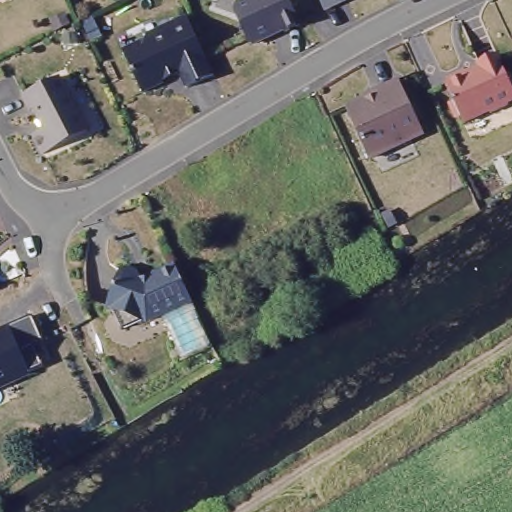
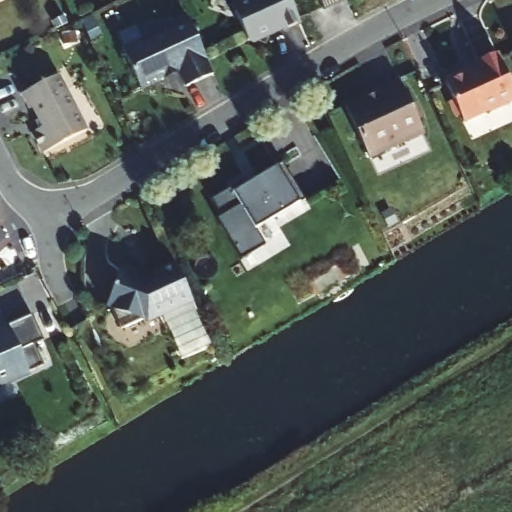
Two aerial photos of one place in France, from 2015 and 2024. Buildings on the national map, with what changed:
unchanged [(300,17),(285,25),(283,23),(254,37),(247,35),(232,6),(236,0),(293,0),(300,17)]
unchanged [(323,1),(323,0),(326,0),(323,1)]
unchanged [(219,77),(192,90),(184,74),(166,82),(167,85),(147,95),(127,55),(148,44),(150,38),(190,18),(219,77)]
unchanged [(512,108),(497,116),(495,113),(470,125),(452,87),(451,80),(470,72),(474,75),(480,73),(479,71),(485,68),(483,65),(502,56),(512,76),(512,108)]
unchanged [(89,128),(45,151),(33,130),(45,124),(35,105),(32,106),(23,91),(60,73),(89,128)]
unchanged [(377,93),(402,80),(428,133),(374,159),(349,109),(378,94),(377,93)]
new [(245,180),(247,185),(274,169),(283,164),(303,199),(299,204),(255,230),(265,244),(240,259),(217,218),(221,215),(211,197),(245,180)]
unchanged [(150,324),(145,321),(122,332),(112,312),(108,308),(123,269),(140,274),(143,280),(152,280),(153,276),(177,266),(192,299),(194,303),(150,324)]
unchanged [(13,328),(12,325),(37,313),(49,339),(40,343),(49,364),(2,386),(0,381),(0,335),(13,328)]

